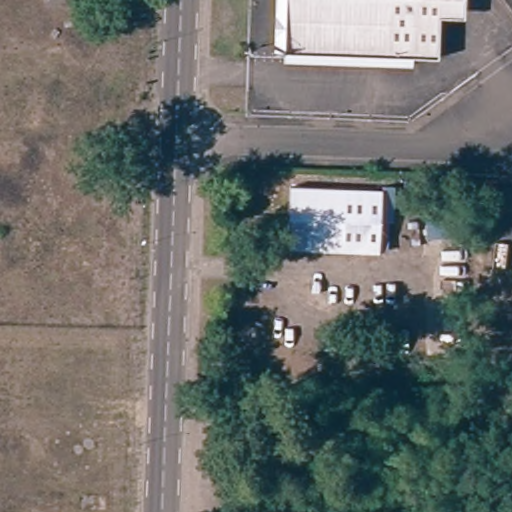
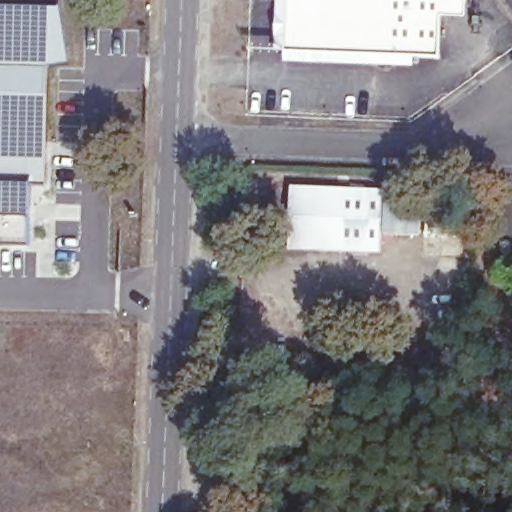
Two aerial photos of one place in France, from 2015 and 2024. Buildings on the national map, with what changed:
unchanged [(432,66),(278,61),(280,0),(462,0),(462,8),(462,27),(433,26),(432,66)]
new [(55,9),(60,7),(69,61),(50,66),(49,96),(47,184),(30,183),(29,186),(28,219),(27,245),(0,244),(0,7),(55,9)]
unchanged [(380,196),(378,260),(285,259),(287,194),(380,196)]
unchanged [(466,238),(432,237),(432,217),(432,212),(454,213),(454,218),(466,218),(466,238)]

